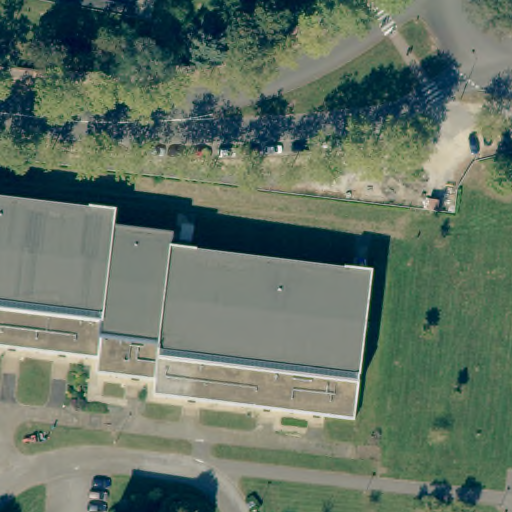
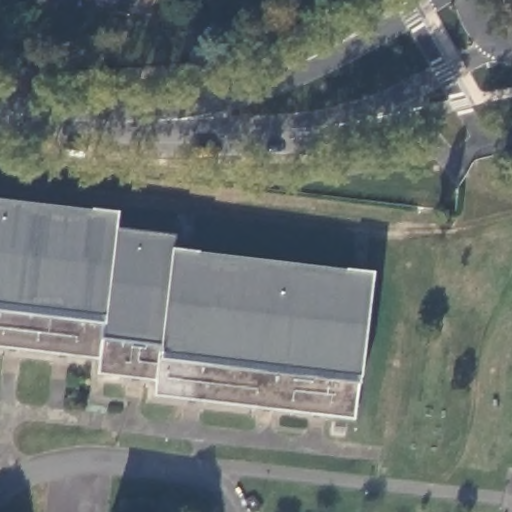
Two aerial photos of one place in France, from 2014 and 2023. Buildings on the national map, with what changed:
unchanged [(134,5),(106,0),(134,0),(134,5)]
unchanged [(275,406),(258,404),(199,397),(183,395),(154,392),(155,377),(144,376),(127,374),(98,370),(100,354),(71,351),(55,349),(21,345),(5,342),(0,341),(0,194),(117,209),(116,223),(174,230),(172,245),(372,269),(354,415),(324,411),(307,409),(275,406)]

